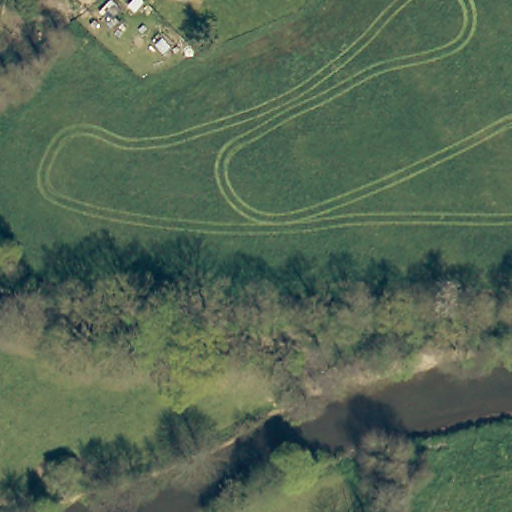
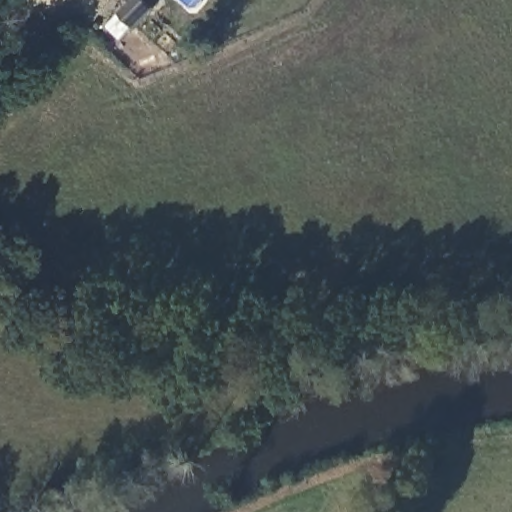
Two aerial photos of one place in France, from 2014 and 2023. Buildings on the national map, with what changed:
[]

